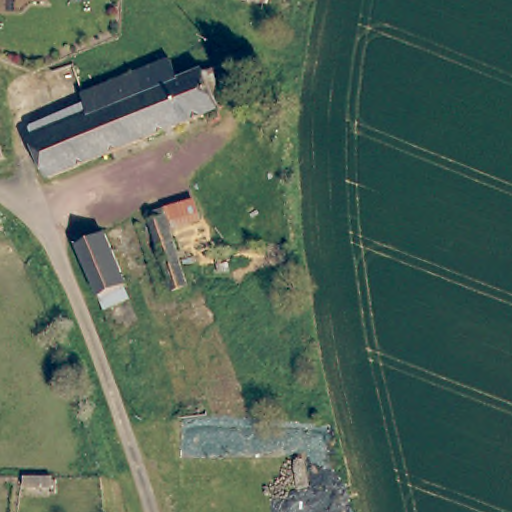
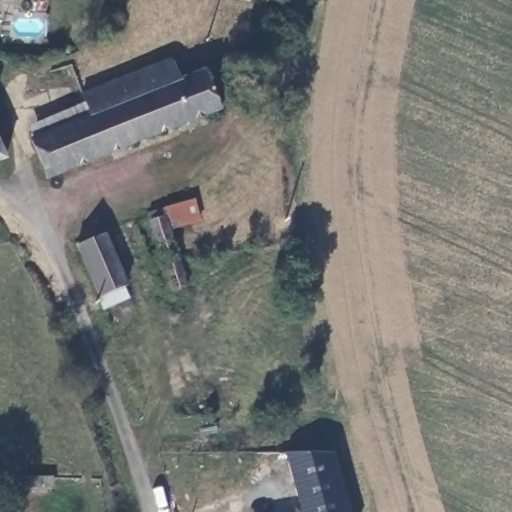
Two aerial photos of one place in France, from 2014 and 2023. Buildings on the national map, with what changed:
unchanged [(181,54),(189,77),(181,80),(100,110),(92,88),(181,54)]
unchanged [(222,106),(194,117),(181,80),(189,77),(210,71),(222,106)]
unchanged [(68,121),(100,110),(181,80),(194,117),(84,160),(68,121)]
unchanged [(39,134),(68,121),(84,160),(52,172),(39,134)]
unchanged [(0,147),(2,151),(0,151),(0,147)]
unchanged [(172,285),(162,257),(145,212),(162,205),(195,197),(201,217),(172,229),(179,249),(189,280),(172,285)]
unchanged [(122,278),(120,279),(125,291),(100,301),(73,239),(101,227),(122,278)]
new [(285,451),(335,453),(351,512),(301,512),(285,451)]

